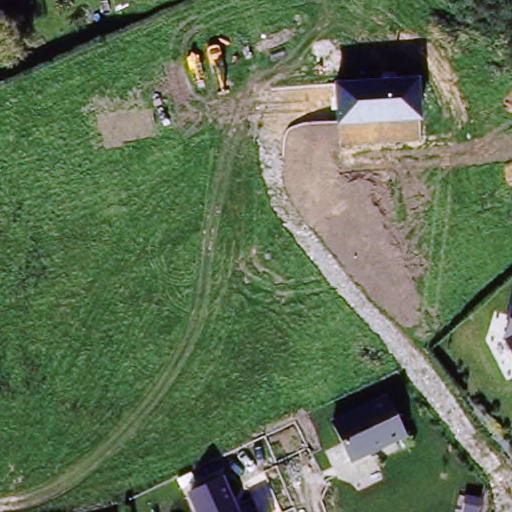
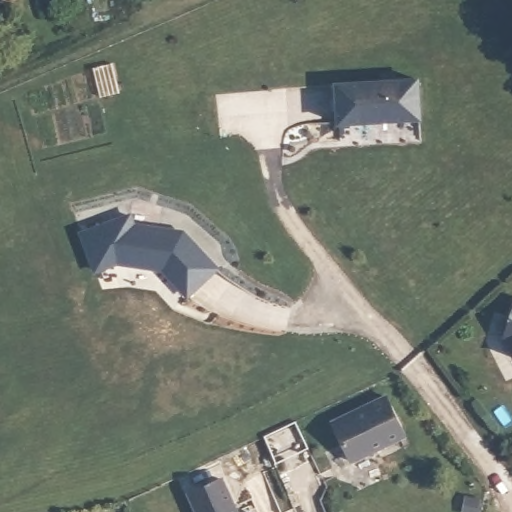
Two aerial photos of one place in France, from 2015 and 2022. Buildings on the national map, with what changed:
unchanged [(334,82),(418,78),(421,120),(337,125),(334,82)]
new [(130,216),(133,226),(182,232),(217,268),(187,296),(163,270),(128,265),(126,260),(96,271),(82,234),(130,216)]
unchanged [(502,341),(512,303),(512,358),(502,341)]
unchanged [(407,440),(349,465),(330,421),(385,396),(407,440)]
new [(295,422),(307,450),(276,463),(265,436),(295,422)]
unchanged [(193,512),(185,493),(224,478),(236,512),(193,512)]
unchanged [(255,512),(251,512),(255,511),(255,512)]

